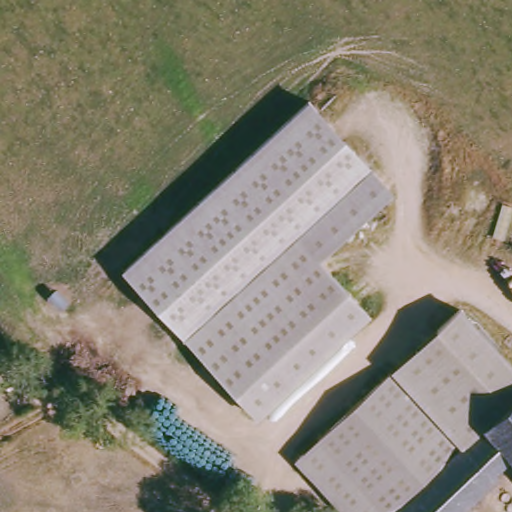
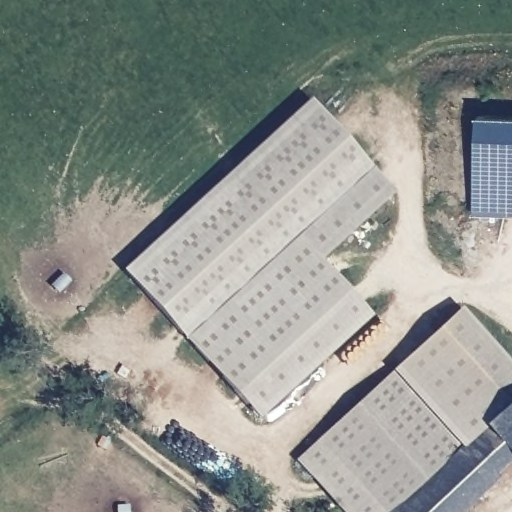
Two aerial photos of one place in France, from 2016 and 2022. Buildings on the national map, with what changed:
unchanged [(303,98),(388,187),(317,255),(300,236),(185,338),(122,271),(303,98)]
new [(475,210),(479,111),(512,113),(512,212),(475,210)]
unchanged [(262,417),(185,338),(300,236),(317,255),(371,317),(262,417)]
unchanged [(465,446),(395,510),(325,435),(465,310),(512,364),(512,405),(465,446)]
unchanged [(465,512),(393,512),(395,510),(465,446),(512,405),(512,470),(465,512)]
unchanged [(325,435),(395,510),(393,512),(341,512),(294,463),(325,435)]

